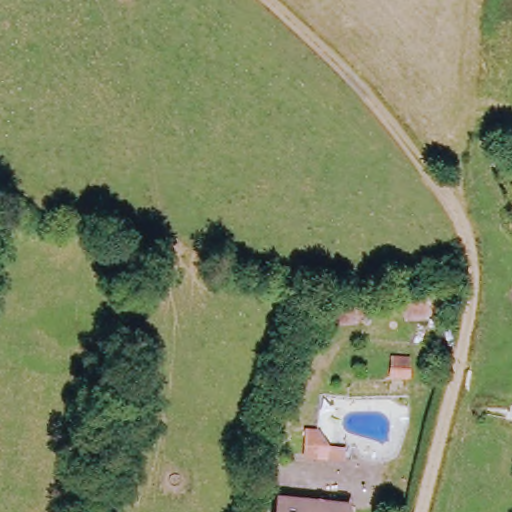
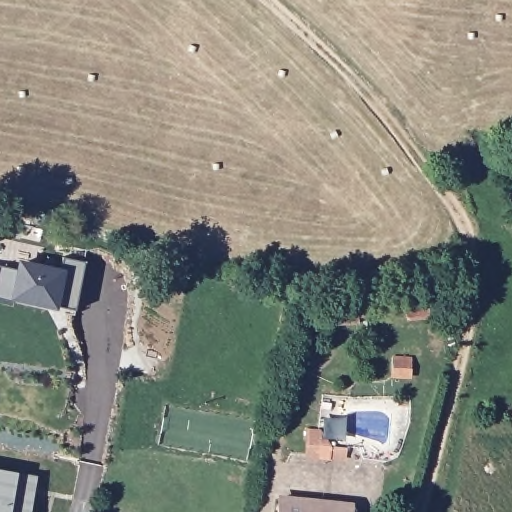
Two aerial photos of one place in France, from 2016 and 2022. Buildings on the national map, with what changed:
new [(14,303),(0,300),(0,260),(40,269),(60,273),(63,258),(85,262),(75,311),(74,315),(14,303)]
unchanged [(314,332),(315,300),(359,296),(427,297),(425,323),(359,319),(359,329),(314,332)]
new [(412,381),(392,380),(392,358),(412,358),(412,381)]
demolished [(512,426),(497,424),(502,404),(512,405),(512,426)]
new [(307,462),(307,431),(324,430),(324,436),(334,447),(350,450),(349,464),(307,462)]
new [(12,480),(23,482),(21,493),(30,495),(27,512),(0,512),(0,473),(14,476),(12,480)]
new [(33,480),(30,495),(21,493),(23,482),(12,480),(14,476),(33,480)]
unchanged [(352,505),(352,512),(281,512),(282,498),(317,501),(352,505)]
new [(30,512),(27,512),(27,511),(30,512)]

